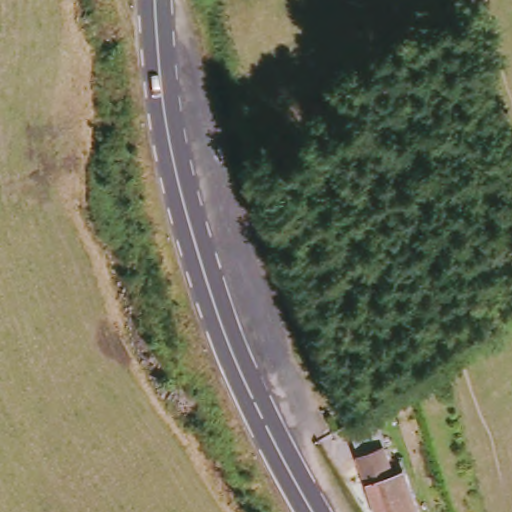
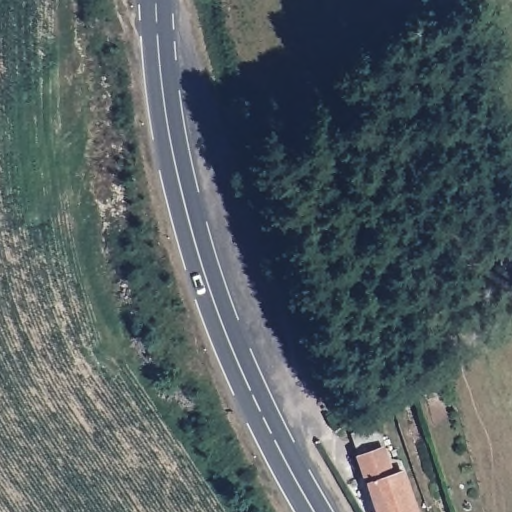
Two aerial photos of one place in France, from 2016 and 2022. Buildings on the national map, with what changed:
unchanged [(419,512),(383,512),(364,460),(357,439),(385,427),(393,448),(386,452),(397,481),(409,476),(419,512)]

